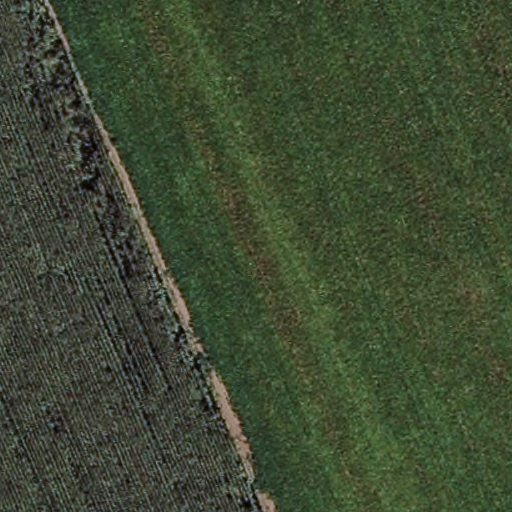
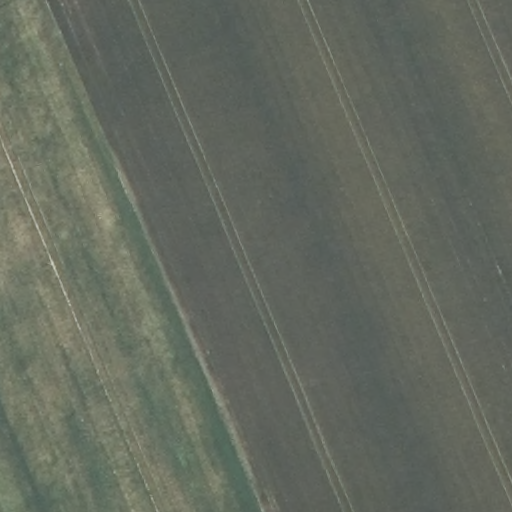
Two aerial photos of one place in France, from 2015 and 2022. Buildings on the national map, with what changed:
[]

